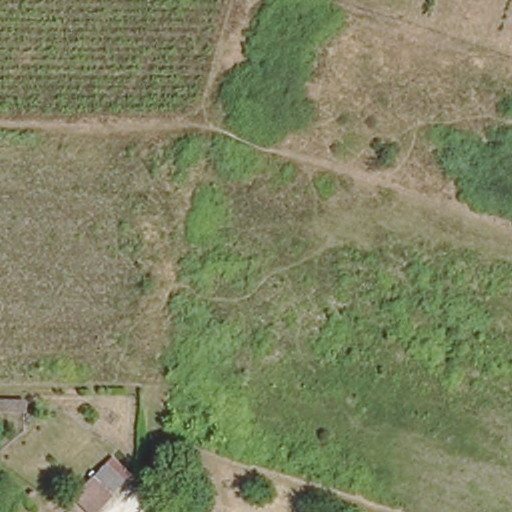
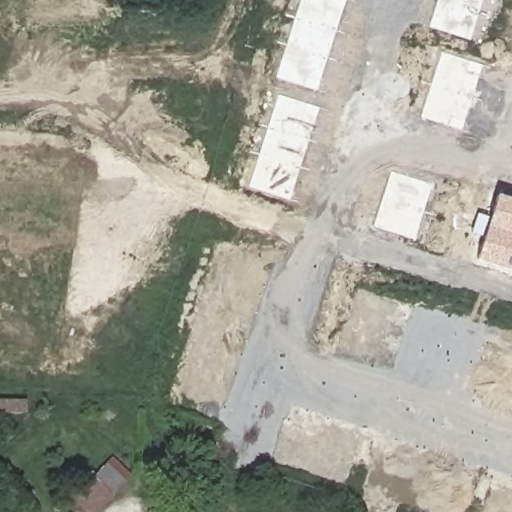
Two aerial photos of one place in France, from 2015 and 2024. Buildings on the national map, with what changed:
new [(276,78),(300,0),(346,0),(317,92),(276,78)]
new [(429,28),(438,0),(482,0),(469,41),(429,28)]
new [(462,131),(420,118),(441,51),(483,65),(462,131)]
new [(290,201),(249,187),(278,95),(320,108),(290,201)]
new [(415,241),(372,228),(390,171),(432,185),(415,241)]
new [(497,195),(512,200),(512,272),(475,261),(497,195)]
unchanged [(129,478),(94,512),(88,512),(75,500),(112,462),(129,478)]

